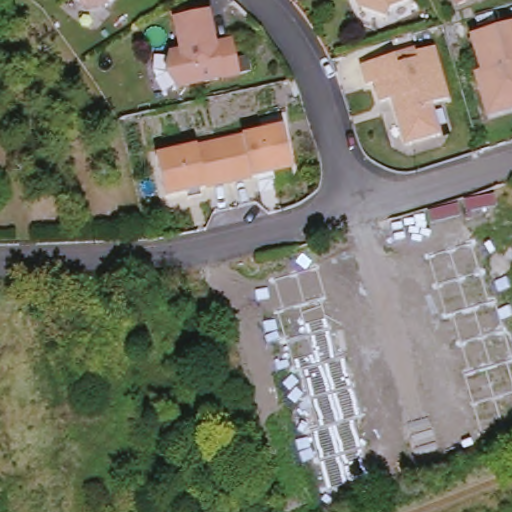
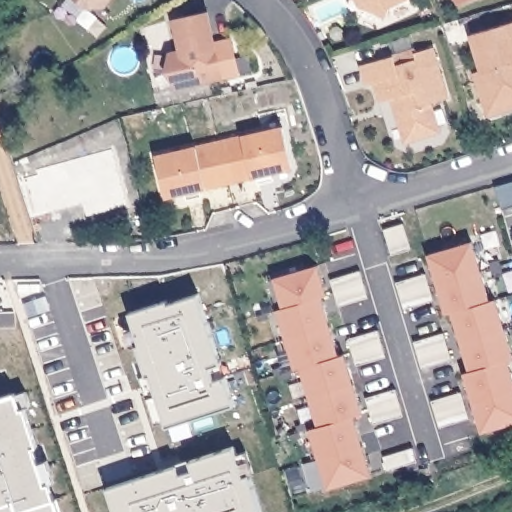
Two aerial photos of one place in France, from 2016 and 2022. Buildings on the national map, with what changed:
unchanged [(88,7),(79,0),(109,0),(104,6),(88,7)]
unchanged [(387,17),(361,7),(358,0),(407,0),(391,7),(387,17)]
unchanged [(457,0),(467,0),(459,3),(457,0)]
unchanged [(215,43),(231,40),(239,73),(178,86),(169,71),(171,53),(182,51),(174,19),(208,11),(215,43)]
unchanged [(489,114),(476,71),(483,70),(472,34),(512,22),(512,107),(489,114)]
unchanged [(432,102),(440,131),(406,141),(397,111),(400,107),(397,96),(381,101),(376,81),(368,84),(362,65),(394,55),(415,49),(416,52),(434,47),(449,97),(432,102)]
unchanged [(293,167),(229,182),(220,141),(284,126),(293,167)]
unchanged [(166,196),(159,168),(157,156),(179,150),(220,141),(229,182),(166,196)]
new [(404,223),(411,248),(391,254),(383,229),(404,223)]
new [(471,241),(480,271),(437,283),(428,254),(471,241)]
new [(317,264),(326,294),(282,306),(274,277),(317,264)]
new [(338,305),(334,291),(330,278),(360,269),(364,282),(368,296),(338,305)]
new [(480,271),(489,301),(445,313),(437,283),(480,271)]
new [(403,308),(399,295),(395,282),(424,273),(428,286),(432,300),(403,308)]
new [(125,317),(198,292),(220,365),(208,370),(211,382),(227,378),(236,408),(164,430),(125,317)]
new [(320,295),(329,325),(285,338),(276,308),(320,295)]
new [(494,299),(503,328),(459,341),(451,312),(494,299)]
new [(329,325),(338,355),(294,367),(285,338),(329,325)]
new [(459,341),(503,328),(512,358),(469,371),(459,341)]
new [(356,365),(351,351),(348,338),(378,329),(381,342),(385,356),(356,365)]
new [(420,368),(416,354),(412,341),(442,332),(446,346),(449,359),(420,368)]
new [(343,353),(352,383),(308,395),(299,366),(343,353)]
new [(506,360),(512,380),(512,390),(472,402),(463,372),(506,360)]
new [(361,412),(317,425),(308,395),(352,383),(361,412)]
new [(373,423),(369,410),(364,397),(394,388),(399,401),(403,415),(373,423)]
new [(512,390),(512,422),(480,432),(472,402),(512,390)]
new [(438,427),(434,414),(429,400),(459,392),(463,405),(467,418),(438,427)]
new [(0,397),(14,393),(20,410),(25,408),(36,445),(32,447),(45,486),(50,484),(59,512),(0,512),(0,397)]
new [(352,415),(361,444),(317,457),(308,428),(352,415)]
new [(361,444),(369,474),(326,487),(317,457),(361,444)]
new [(412,447),(416,461),(386,469),(382,455),(412,447)]
new [(238,466),(248,464),(263,511),(261,512),(107,512),(100,492),(232,451),(238,466)]

